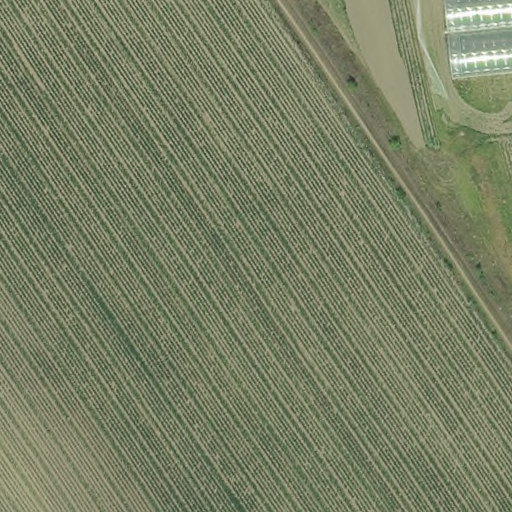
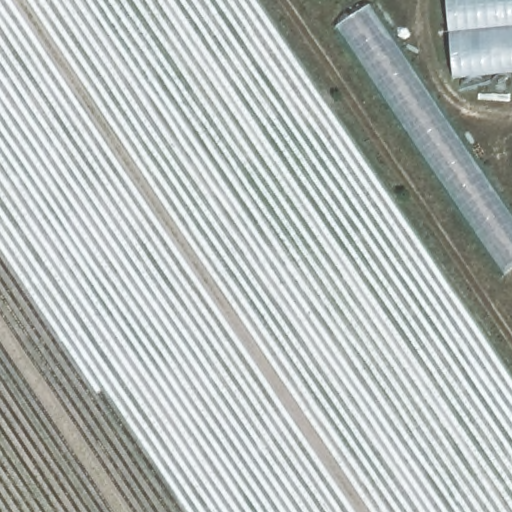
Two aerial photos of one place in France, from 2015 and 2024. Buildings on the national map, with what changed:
unchanged [(455,76),(446,0),(512,0),(512,71),(455,76)]
new [(512,212),(512,274),(500,282),(334,30),(372,2),(512,212)]

